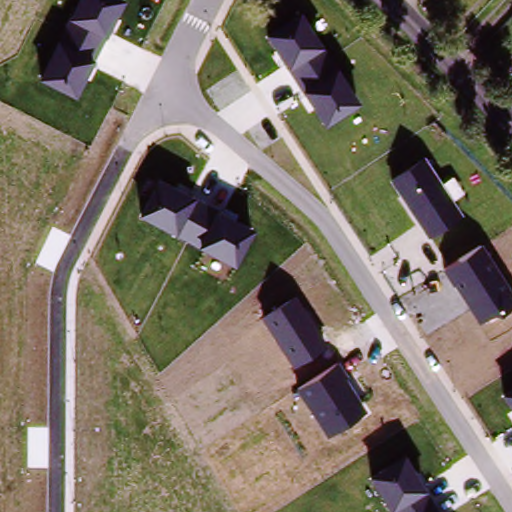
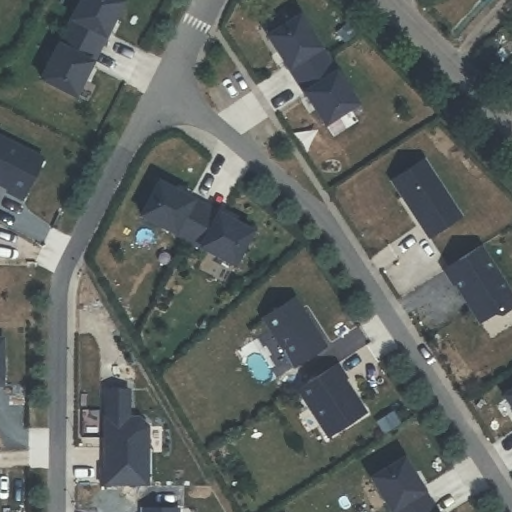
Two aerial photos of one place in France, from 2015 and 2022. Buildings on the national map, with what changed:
unchanged [(41,80),(79,0),(122,0),(125,1),(77,100),(41,80)]
unchanged [(326,127),(266,36),(301,14),(360,105),(326,127)]
new [(24,202),(9,195),(10,191),(0,186),(0,128),(50,153),(24,202)]
unchanged [(428,239),(390,181),(426,159),(462,217),(428,239)]
unchanged [(236,267),(140,217),(157,182),(254,230),(236,267)]
unchanged [(500,317),(494,313),(480,324),(456,286),(455,286),(445,270),(482,246),(512,293),(512,308),(500,317)]
unchanged [(293,297),(327,347),(294,368),(262,318),(293,297)]
new [(3,384),(0,384),(0,338),(4,338),(3,384)]
unchanged [(339,364),(367,412),(328,438),(298,391),(339,364)]
unchanged [(502,396),(512,389),(512,409),(502,396)]
new [(101,466),(104,466),(105,415),(139,416),(139,432),(147,432),(147,483),(101,482),(101,466)]
unchanged [(404,457),(437,512),(391,512),(370,477),(404,457)]
new [(143,508),(176,508),(176,512),(143,512),(143,508)]

